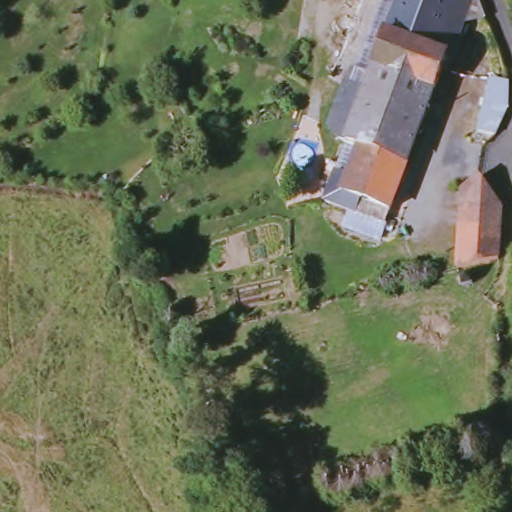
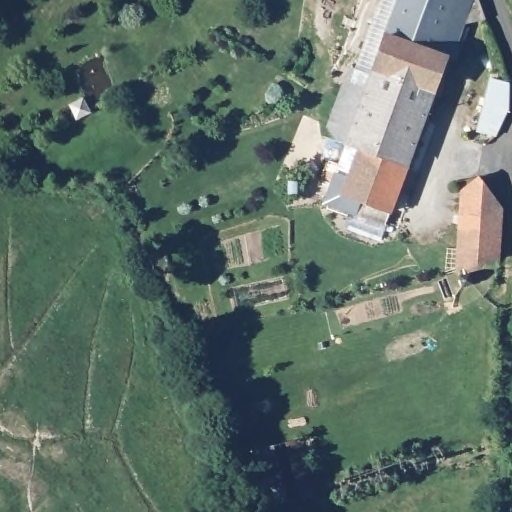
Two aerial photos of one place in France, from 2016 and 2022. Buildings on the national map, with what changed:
unchanged [(396,211),(337,191),(354,145),(344,141),(341,132),(370,58),(352,51),(367,14),(361,11),(366,0),(485,0),(491,17),(470,24),(457,60),(452,72),(448,70),(396,211)]
unchanged [(502,135),(486,128),(502,77),(512,81),(512,118),(502,135)]
unchanged [(504,246),(475,254),(462,256),(475,178),(489,164),(493,163),(508,195),(504,246)]
unchanged [(479,270),(467,273),(464,263),(476,259),(479,270)]
unchanged [(329,487),(277,500),(261,442),(315,430),(329,487)]

